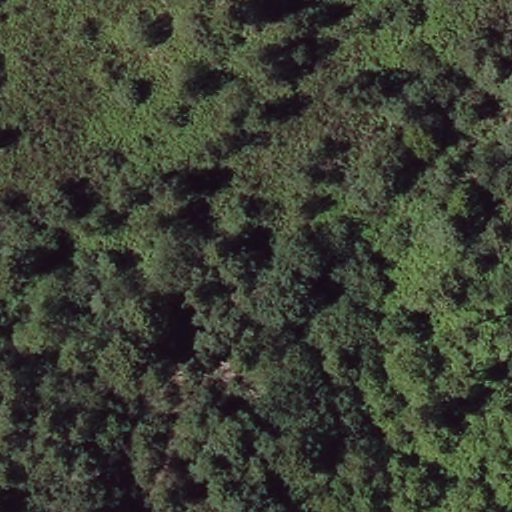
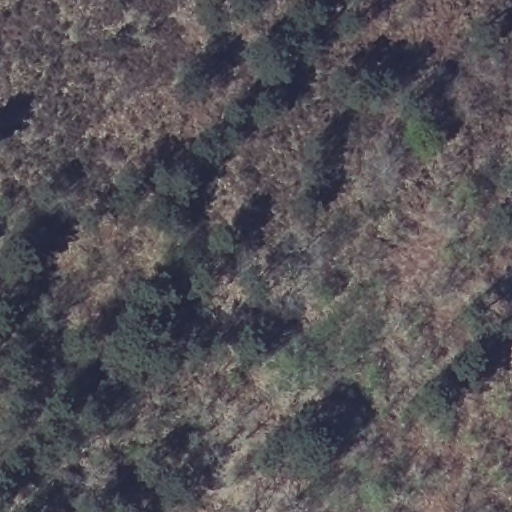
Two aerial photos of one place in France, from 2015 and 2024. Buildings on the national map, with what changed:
[]

